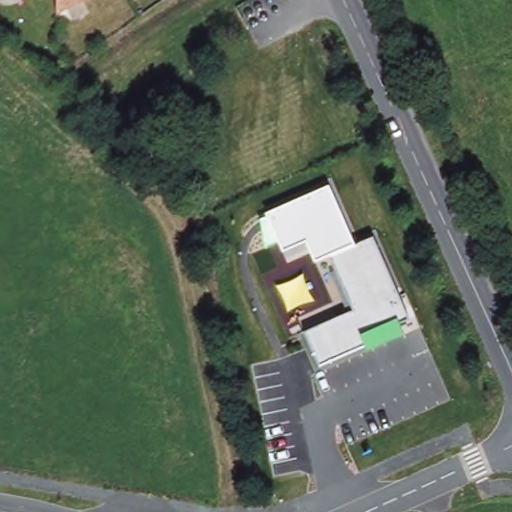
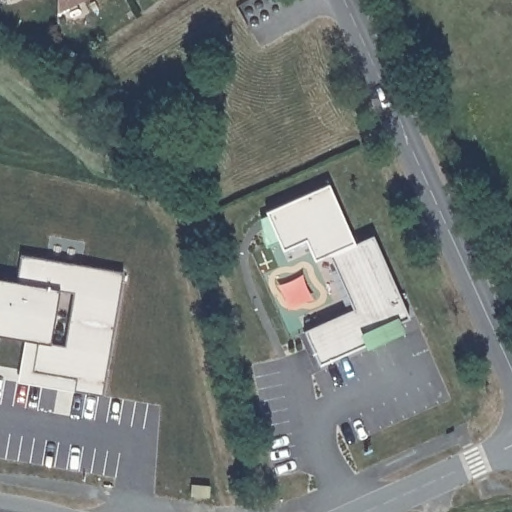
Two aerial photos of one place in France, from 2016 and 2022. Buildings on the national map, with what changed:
unchanged [(55,13),(55,0),(83,0),(55,13)]
unchanged [(330,254),(315,260),(305,240),(282,250),(266,212),(329,185),(353,244),(330,254)]
unchanged [(330,254),(372,236),(408,316),(400,321),(405,332),(364,349),(363,346),(318,366),(302,330),(352,309),(330,254)]
new [(21,254),(124,272),(102,396),(74,392),(75,379),(32,372),(37,343),(25,341),(0,337),(0,279),(16,281),(21,254)]
new [(25,341),(37,343),(32,372),(75,379),(74,392),(17,382),(25,341)]

